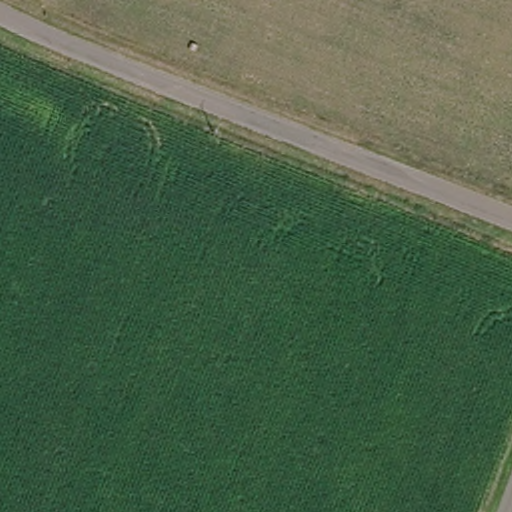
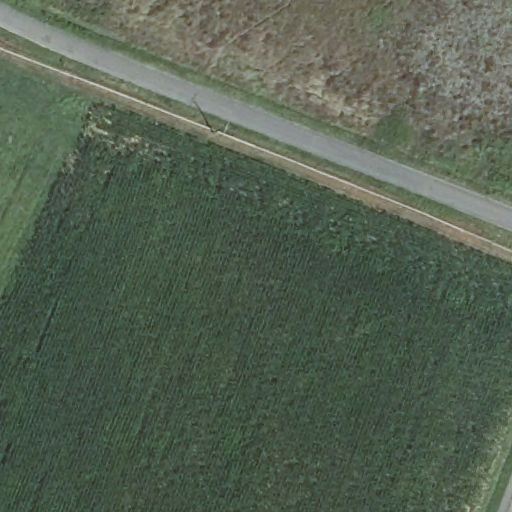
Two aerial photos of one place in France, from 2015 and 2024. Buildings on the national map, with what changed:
[]

